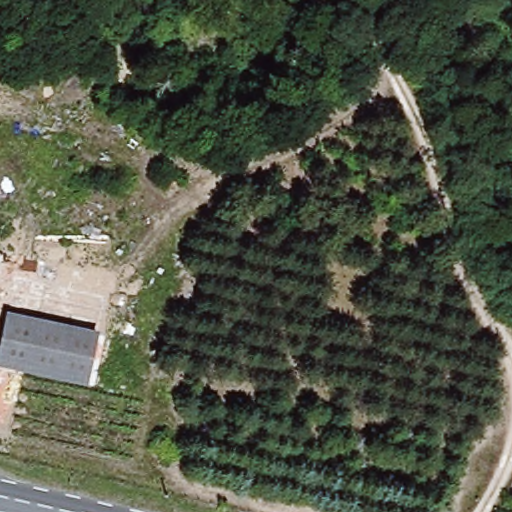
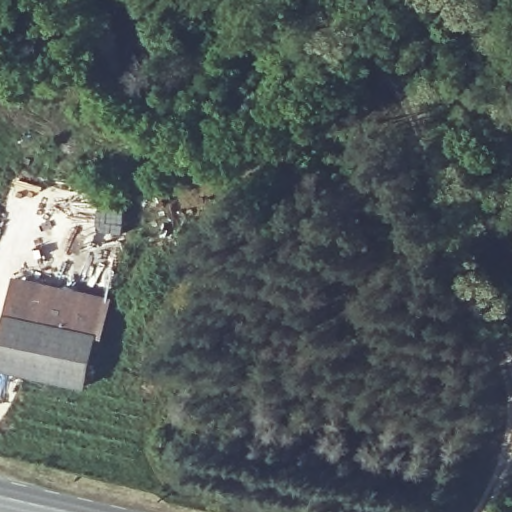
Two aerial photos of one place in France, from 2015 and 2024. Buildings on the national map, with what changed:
new [(112,297),(105,338),(97,336),(5,313),(12,276),(112,297)]
unchanged [(0,364),(0,338),(5,313),(97,336),(86,384),(0,364)]

